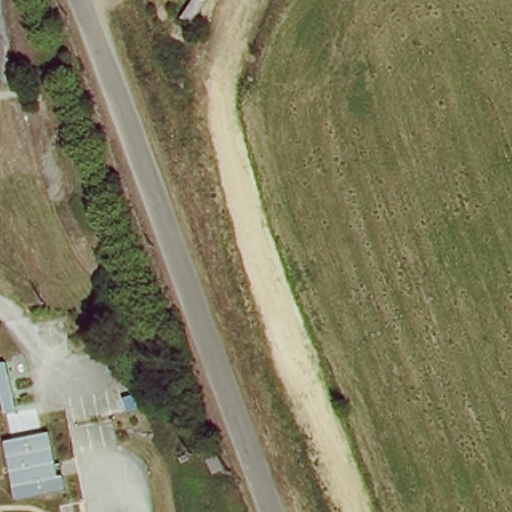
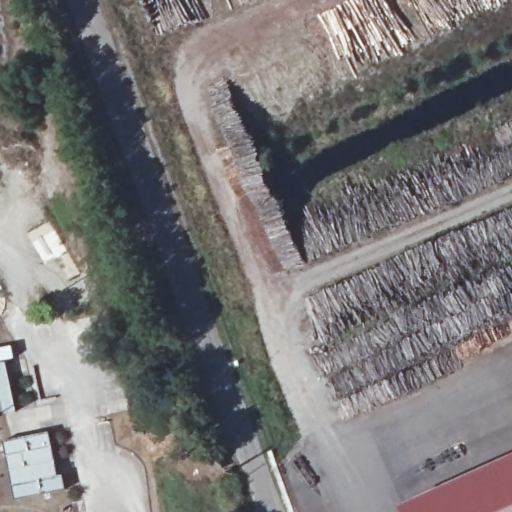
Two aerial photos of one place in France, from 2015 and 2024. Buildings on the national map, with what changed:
unchanged [(4,414),(0,394),(0,363),(7,362),(17,412),(4,414)]
unchanged [(9,441),(48,432),(62,488),(20,497),(9,441)]
new [(403,512),(400,505),(512,454),(512,512),(403,512)]

